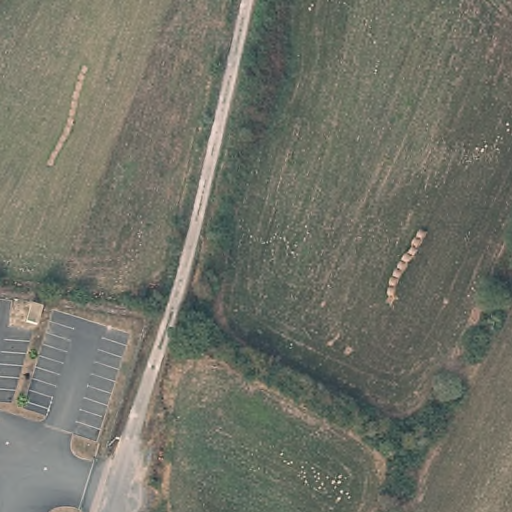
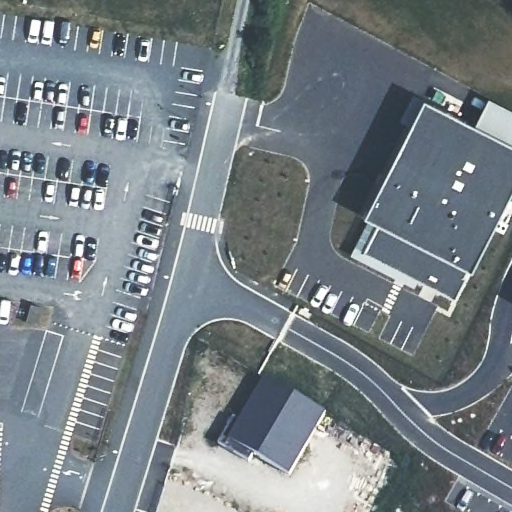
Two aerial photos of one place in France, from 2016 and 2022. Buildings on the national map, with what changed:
new [(472,123),(486,97),(512,110),(512,183),(467,269),(453,296),(415,278),(411,285),(347,254),(365,217),(360,214),(419,96),(472,123)]
unchanged [(291,475),(253,453),(249,460),(218,442),(234,416),(241,420),(265,377),(326,413),(291,475)]

